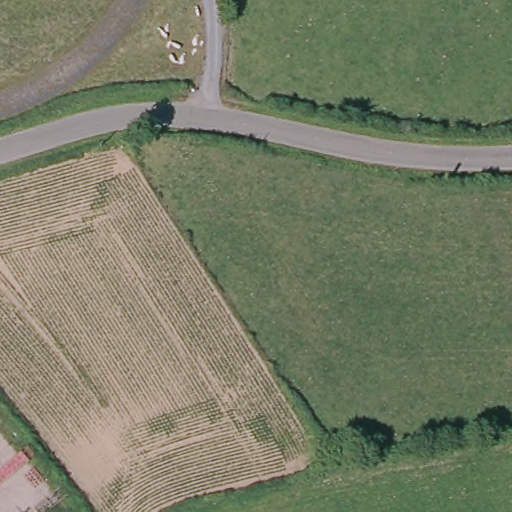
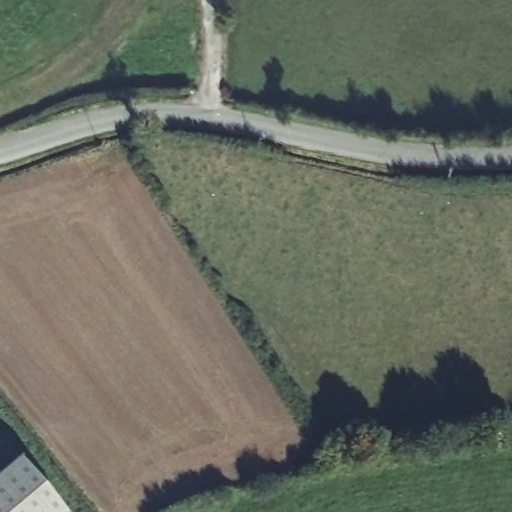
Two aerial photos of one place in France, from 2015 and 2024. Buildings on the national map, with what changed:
new [(62,512),(0,512),(0,479),(20,462),(62,512)]

